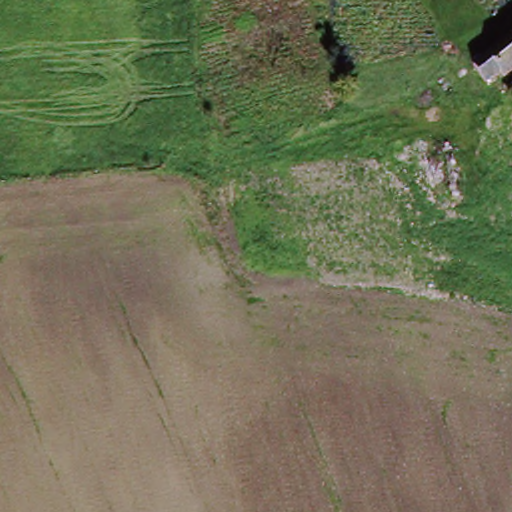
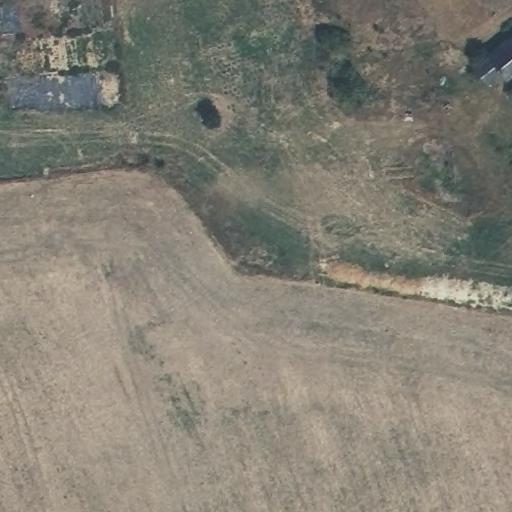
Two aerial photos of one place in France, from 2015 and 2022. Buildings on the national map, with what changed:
unchanged [(463,74),(512,37),(512,75),(501,83),(497,78),(474,94),(463,74)]

